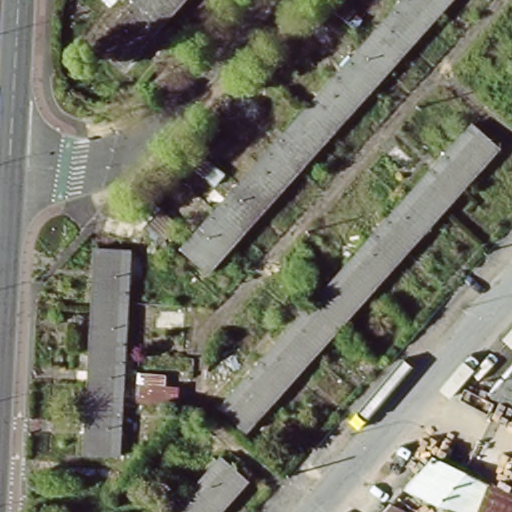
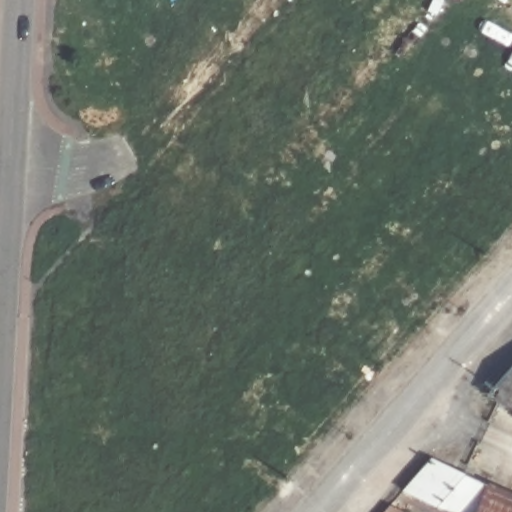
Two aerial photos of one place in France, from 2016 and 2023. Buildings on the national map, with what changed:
demolished [(126,70),(100,47),(142,0),(189,0),(126,70)]
demolished [(203,277),(177,254),(404,0),(451,0),(203,277)]
demolished [(215,412),(250,375),(241,367),(251,356),(260,363),(470,130),(495,153),(242,436),(215,412)]
demolished [(132,255),(121,461),(86,460),(97,253),(132,255)]
unchanged [(490,396),(512,370),(512,406),(490,396)]
unchanged [(443,458),(485,478),(512,490),(512,512),(463,512),(416,489),(443,458)]
demolished [(249,486),(225,512),(179,512),(223,463),(249,486)]
unchanged [(397,512),(403,505),(418,511),(418,512),(397,512)]

